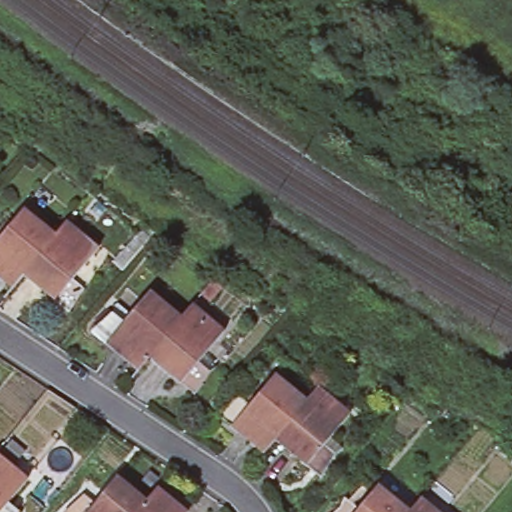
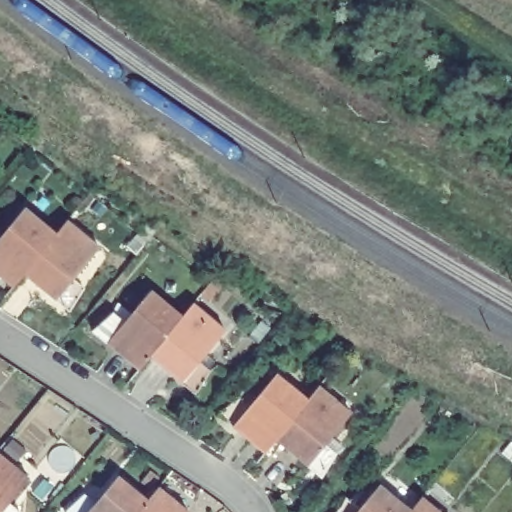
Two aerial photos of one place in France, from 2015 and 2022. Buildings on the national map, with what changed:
unchanged [(24,203),(55,229),(57,229),(22,269),(23,270),(12,283),(0,272),(0,232),(24,203)]
unchanged [(23,270),(22,269),(57,229),(55,229),(67,215),(99,243),(72,274),(83,283),(68,306),(55,295),(23,270)]
unchanged [(214,279),(221,285),(208,300),(201,294),(214,279)]
unchanged [(97,332),(117,313),(122,303),(135,314),(155,290),(187,317),(187,318),(154,357),(155,357),(143,370),(111,343),(97,332)]
unchanged [(213,370),(215,372),(200,394),(185,383),(155,357),(154,357),(187,318),(187,317),(198,304),(230,330),(210,354),(220,363),(213,370)]
unchanged [(312,400),(313,401),(280,439),(280,440),(269,453),(237,427),(222,415),(243,396),(248,388),(261,398),(281,374),(312,400)]
unchanged [(280,440),(280,439),(313,401),(312,400),(323,387),(355,414),(336,438),(348,449),(341,454),(326,478),(312,466),(280,440)]
unchanged [(1,452),(33,479),(14,503),(26,512),(0,512),(0,453),(1,452)]
unchanged [(152,501),(143,512),(68,512),(89,493),(93,484),(107,495),(122,476),(152,501)]
unchanged [(415,506),(415,507),(411,512),(335,512),(347,502),(350,493),(363,504),(383,480),(415,506)]
unchanged [(152,501),(162,487),(192,512),(143,512),(152,501)]
unchanged [(415,507),(415,506),(426,493),(449,512),(411,512),(415,507)]

